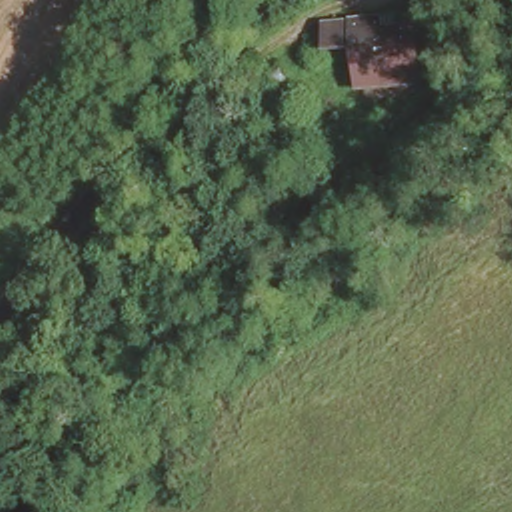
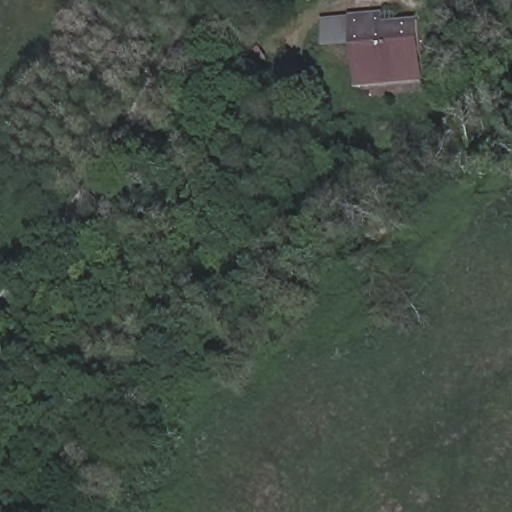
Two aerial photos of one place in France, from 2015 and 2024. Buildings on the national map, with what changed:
unchanged [(451,37),(446,5),(476,0),(501,0),(502,6),(512,5),(512,57),(483,61),(477,32),(451,37)]
unchanged [(352,79),(347,41),(313,42),(317,11),(397,5),(398,16),(420,14),(426,76),(352,79)]
unchanged [(483,61),(512,57),(512,67),(485,71),(483,61)]

